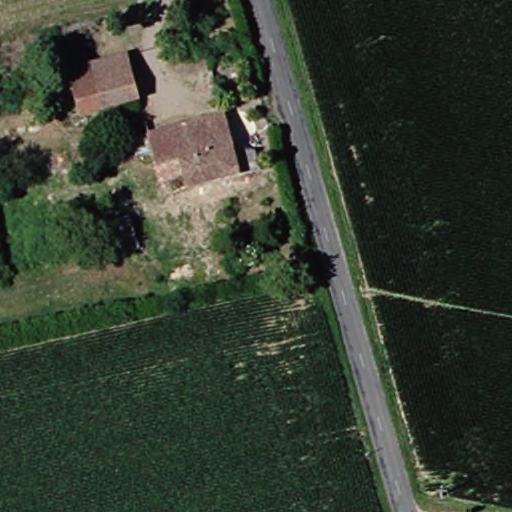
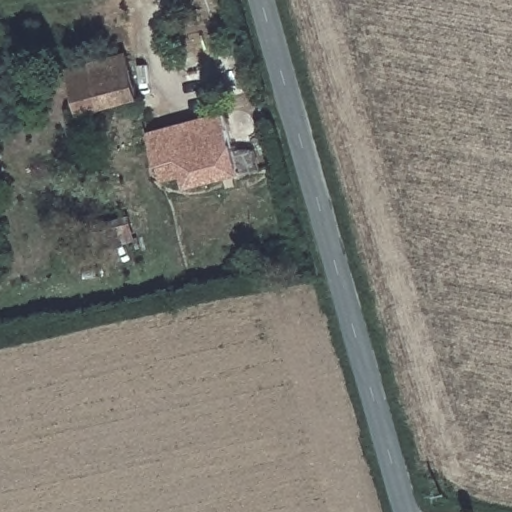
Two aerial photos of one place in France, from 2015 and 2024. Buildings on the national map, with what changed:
unchanged [(127,56),(139,96),(79,112),(67,71),(127,56)]
unchanged [(230,144),(237,143),(241,151),(252,147),(257,164),(189,184),(182,175),(164,179),(155,150),(138,155),(132,137),(150,133),(220,113),(230,144)]
unchanged [(102,251),(96,228),(130,216),(137,237),(102,251)]

